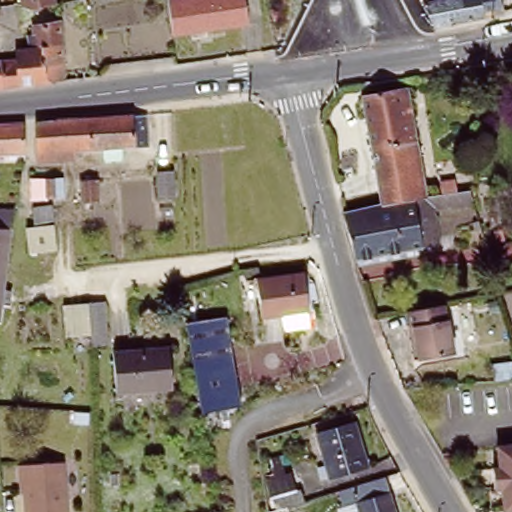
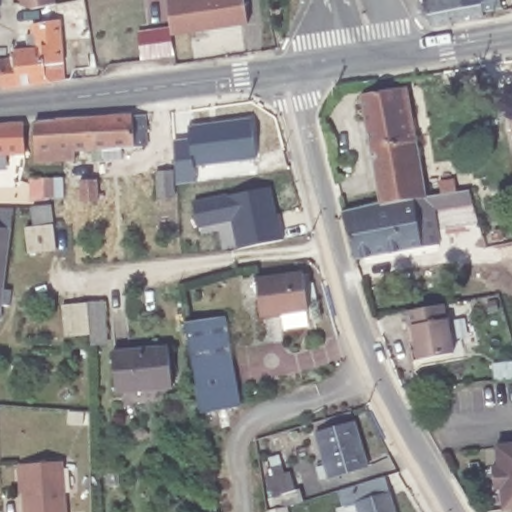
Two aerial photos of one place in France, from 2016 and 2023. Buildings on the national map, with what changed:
unchanged [(17,5),(16,0),(52,0),(52,2),(27,9),(17,5)]
unchanged [(168,0),(246,0),(249,21),(173,34),(168,0)]
unchanged [(422,2),(435,0),(480,0),(483,16),(435,25),(422,2)]
unchanged [(0,91),(0,64),(22,61),(22,53),(33,52),(32,39),(39,37),(38,30),(67,27),(70,72),(70,84),(0,91)]
unchanged [(342,215),(337,197),(342,196),(375,189),(372,164),(365,165),(362,150),(369,149),(361,99),(407,91),(425,200),(342,215)]
unchanged [(77,149),(77,160),(37,161),(35,121),(148,114),(150,145),(77,149)]
new [(195,184),(175,184),(174,171),(171,140),(188,138),(186,127),(249,119),(257,159),(195,167),(195,184)]
unchanged [(25,154),(0,154),(0,123),(25,121),(25,154)]
demolished [(158,197),(156,172),(174,171),(175,196),(158,197)]
new [(156,172),(174,171),(175,196),(158,197),(156,172)]
unchanged [(32,199),(31,177),(62,177),(62,199),(32,199)]
new [(238,250),(232,222),(198,229),(193,201),(270,187),(277,215),(280,215),(285,239),(238,250)]
unchanged [(433,215),(438,247),(421,250),(356,261),(342,215),(425,200),(468,193),(472,207),(433,215)]
unchanged [(30,250),(28,227),(36,226),(34,205),(54,205),(55,225),(57,249),(30,250)]
unchanged [(5,288),(14,290),(12,305),(3,305),(0,321),(0,208),(15,209),(5,288)]
unchanged [(286,328),(284,315),(262,317),(257,278),(303,272),(308,311),(310,326),(286,328)]
unchanged [(87,333),(64,335),(61,304),(84,301),(100,300),(104,331),(105,343),(87,344),(87,333)]
unchanged [(420,356),(415,323),(410,324),(407,309),(450,301),(457,350),(420,356)]
unchanged [(202,413),(186,320),(225,314),(241,405),(202,413)]
unchanged [(112,390),(108,350),(163,345),(165,386),(112,390)]
unchanged [(332,477),(318,432),(353,422),(367,467),(332,477)]
unchanged [(497,492),(491,493),(488,471),(495,470),(492,449),(512,446),(512,512),(500,512),(497,492)]
unchanged [(25,465),(65,462),(68,512),(28,512),(25,465)]
unchanged [(277,510),(274,496),(270,482),(289,476),(293,490),(299,487),(303,500),(292,503),(277,510)]
unchanged [(353,501),(387,490),(393,512),(356,512),(353,501)]

